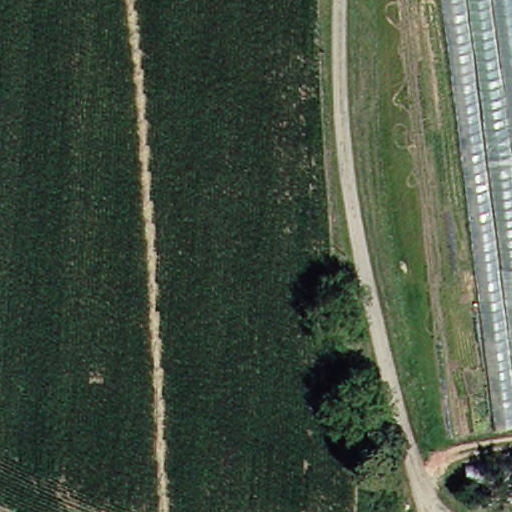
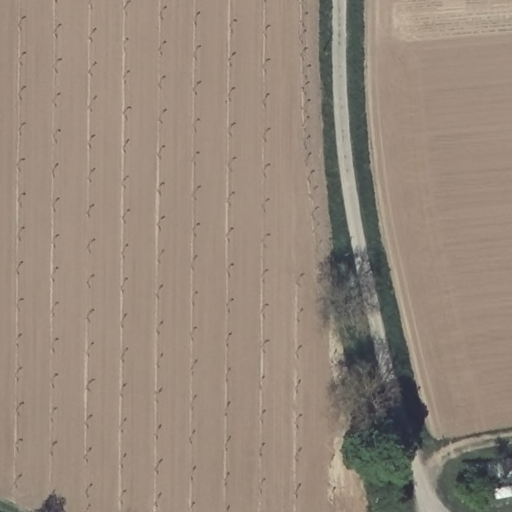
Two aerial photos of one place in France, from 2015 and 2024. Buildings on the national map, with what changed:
demolished [(433,0),(512,0),(512,422),(489,425),(433,0)]

